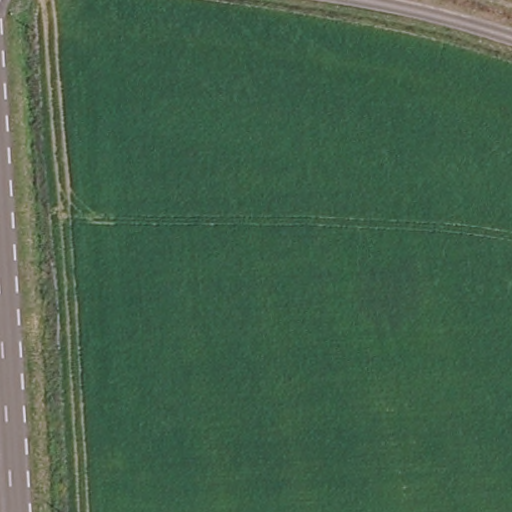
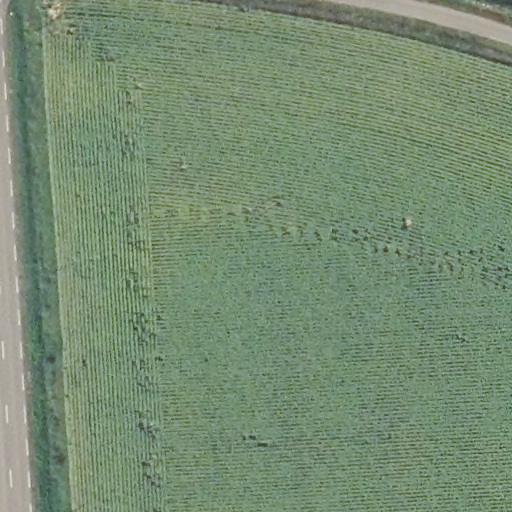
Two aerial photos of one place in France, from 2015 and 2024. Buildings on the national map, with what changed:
[]

